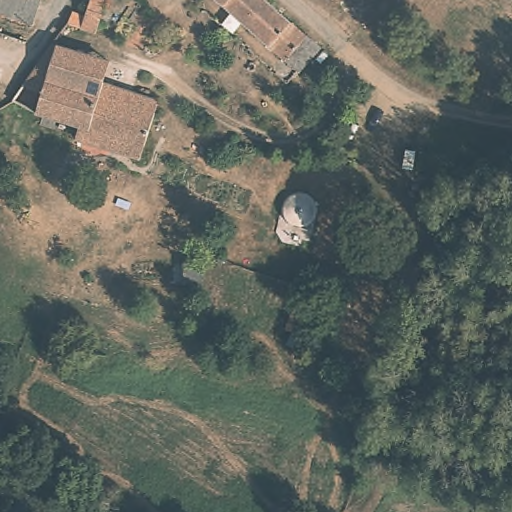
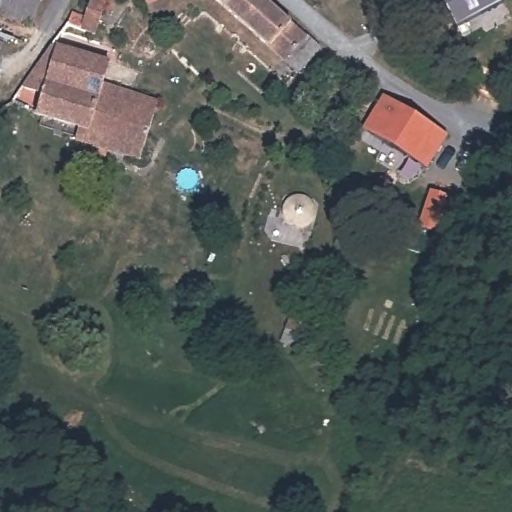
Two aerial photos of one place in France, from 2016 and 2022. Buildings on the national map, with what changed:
unchanged [(0,15),(0,0),(41,0),(32,26),(0,15)]
unchanged [(85,18),(91,0),(105,0),(106,1),(95,34),(81,29),(81,28),(69,23),(72,13),(85,18)]
unchanged [(303,72),(222,0),(270,0),(325,48),(303,72)]
new [(456,28),(441,0),(504,0),(505,1),(456,28)]
unchanged [(56,44),(114,63),(108,83),(106,82),(102,95),(53,79),(55,73),(40,68),(56,44)]
unchanged [(86,127),(41,114),(47,94),(26,87),(40,68),(55,73),(53,79),(102,95),(106,82),(108,83),(163,101),(145,160),(103,147),(82,140),(86,127)]
new [(381,95),(449,134),(427,169),(361,129),(381,95)]

